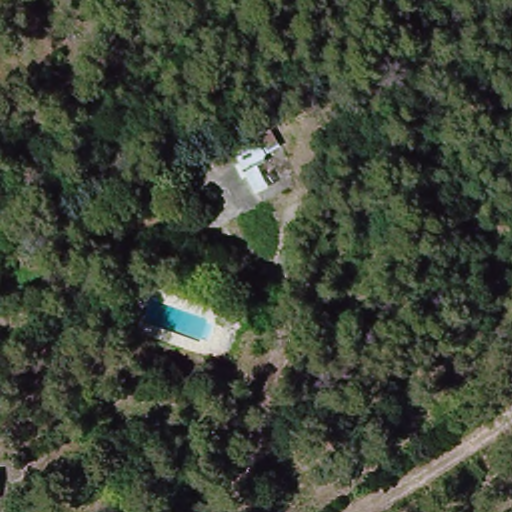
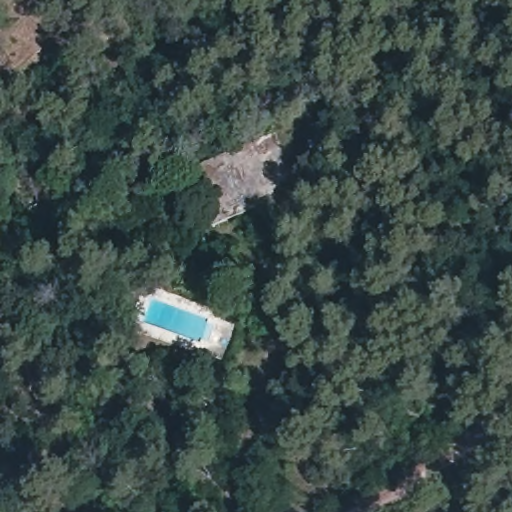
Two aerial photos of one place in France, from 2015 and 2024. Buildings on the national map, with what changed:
unchanged [(281,133),(304,188),(217,225),(194,170),(281,133)]
unchanged [(75,257),(84,280),(71,285),(62,263),(75,257)]

